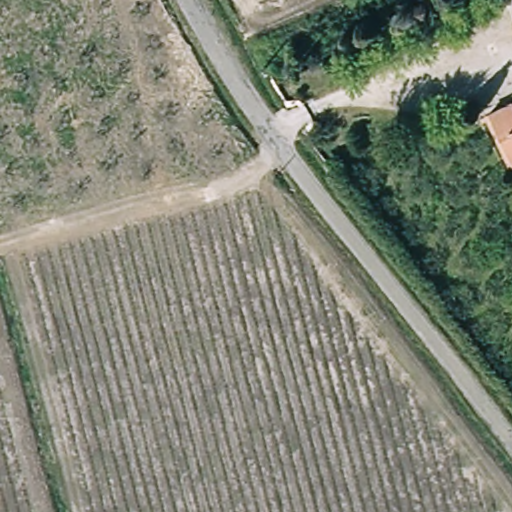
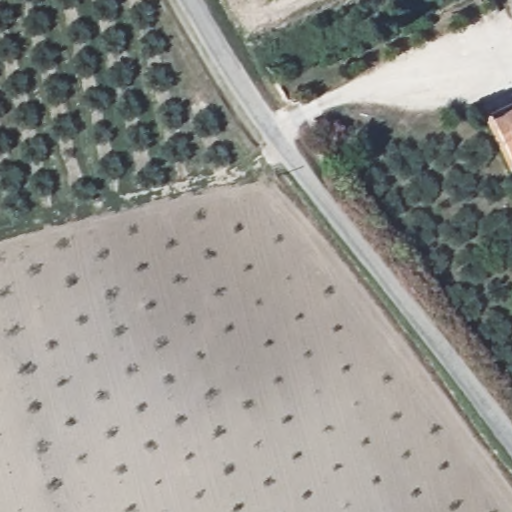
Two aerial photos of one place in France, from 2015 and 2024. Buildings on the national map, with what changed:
unchanged [(512,103),(512,159),(507,161),(484,115),(511,102),(512,103)]

